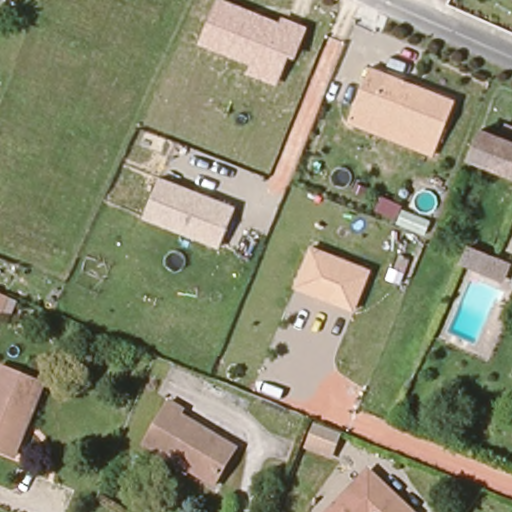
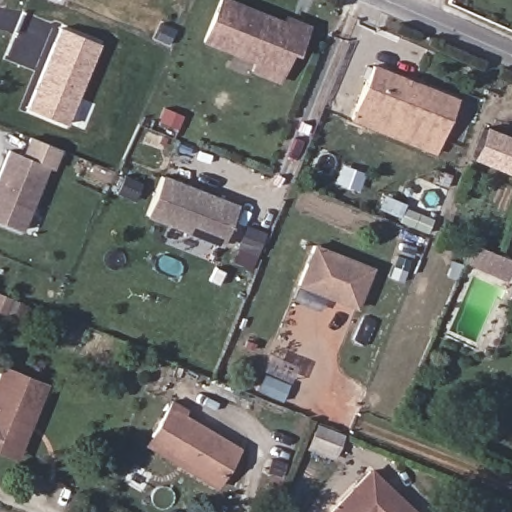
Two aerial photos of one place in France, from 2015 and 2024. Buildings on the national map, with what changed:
unchanged [(296,56),(290,54),(279,83),(249,71),(252,62),(200,41),(217,0),(232,0),(282,20),(284,14),(310,24),(296,56)]
new [(66,125),(25,108),(58,26),(100,43),(66,125)]
unchanged [(441,139),(356,105),(372,63),(460,97),(441,139)]
unchanged [(477,159),(489,131),(512,141),(512,174),(477,159)]
new [(21,231),(0,223),(0,168),(8,149),(21,155),(30,136),(62,149),(54,170),(48,167),(21,231)]
unchanged [(161,177),(235,207),(221,245),(147,215),(161,177)]
unchanged [(372,266),(356,307),(301,287),(315,246),(372,266)]
unchanged [(479,248),(508,260),(512,262),(512,282),(472,265),(479,248)]
unchanged [(0,454),(0,388),(8,371),(50,388),(34,427),(19,461),(11,458),(0,454)]
unchanged [(156,438),(175,406),(189,415),(187,419),(243,451),(221,489),(185,468),(150,449),(156,438)]
unchanged [(314,423),(345,434),(335,462),(305,451),(314,423)]
unchanged [(415,512),(334,512),(373,471),(415,512)]

